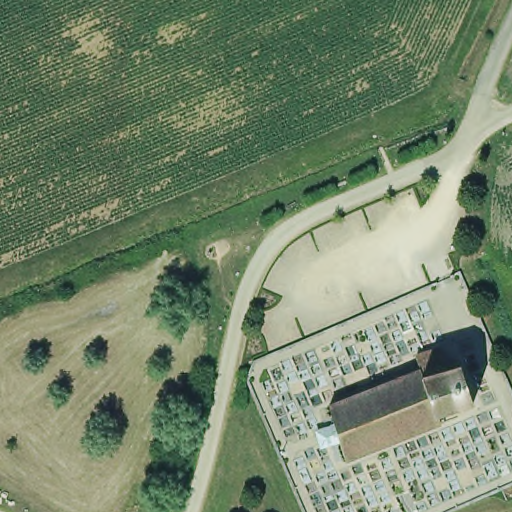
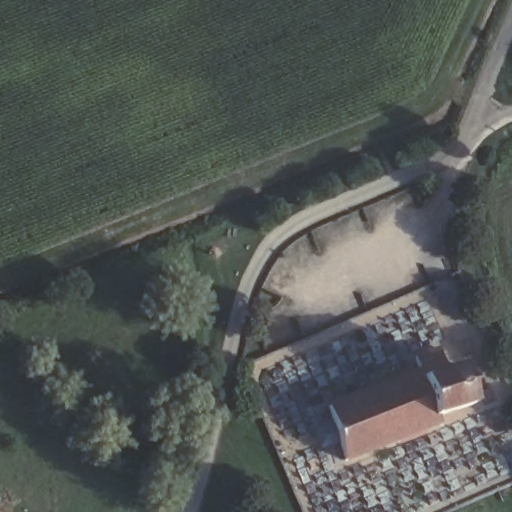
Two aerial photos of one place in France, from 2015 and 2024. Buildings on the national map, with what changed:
unchanged [(462,370),(473,408),(438,421),(439,427),(349,461),(331,412),(422,372),(417,360),(442,352),(449,373),(462,370)]

